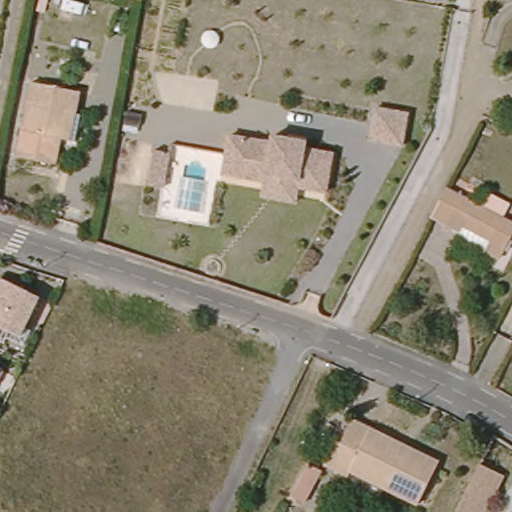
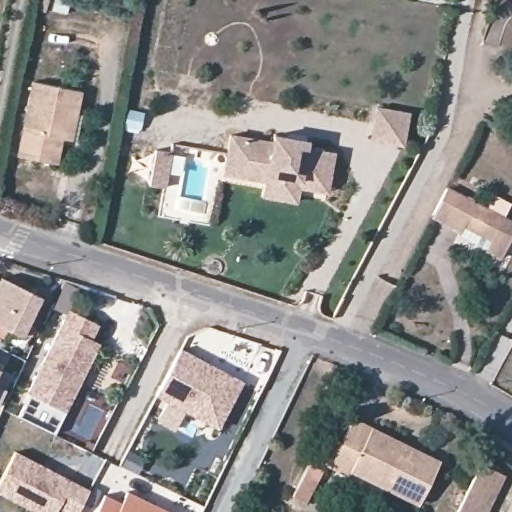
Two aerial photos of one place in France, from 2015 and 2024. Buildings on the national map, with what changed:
unchanged [(60,137),(55,164),(17,156),(32,81),(81,90),(75,117),(71,139),(60,137)]
unchanged [(377,106),(413,111),(405,149),(372,142),(377,106)]
unchanged [(228,134),(270,137),(271,132),(307,138),(338,150),(330,194),(300,184),(297,205),(259,198),(264,177),(227,175),(228,134)]
unchanged [(447,226),(433,219),(447,190),(464,197),(512,222),(512,236),(501,258),(487,251),(490,243),(465,229),(462,233),(447,226)]
unchanged [(46,297),(24,341),(0,330),(0,283),(3,277),(46,297)]
new [(27,391),(68,309),(100,325),(91,339),(100,344),(65,411),(27,391)]
new [(167,401),(155,395),(181,348),(244,381),(220,429),(185,412),(175,430),(157,422),(167,401)]
unchanged [(419,501),(387,487),(352,470),(350,473),(325,462),(337,437),(342,439),(352,419),(399,441),(424,453),(439,460),(419,501)]
new [(0,480),(15,450),(89,488),(77,512),(67,512),(57,507),(54,512),(35,512),(0,493),(0,480)]
unchanged [(504,478),(488,512),(455,512),(478,465),(504,478)]
unchanged [(309,467),(322,472),(306,506),(293,500),(309,467)]
new [(104,493),(121,505),(127,490),(172,512),(95,512),(104,493)]

